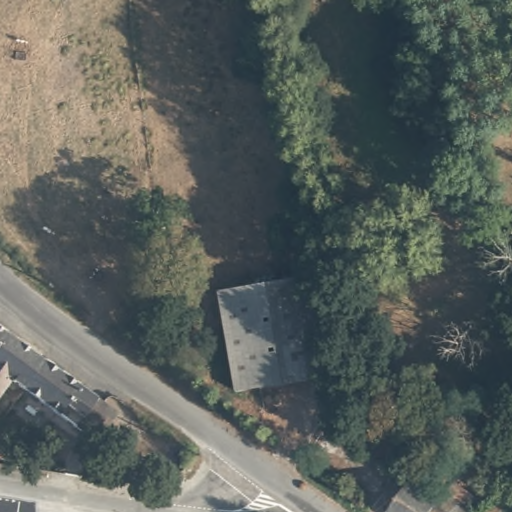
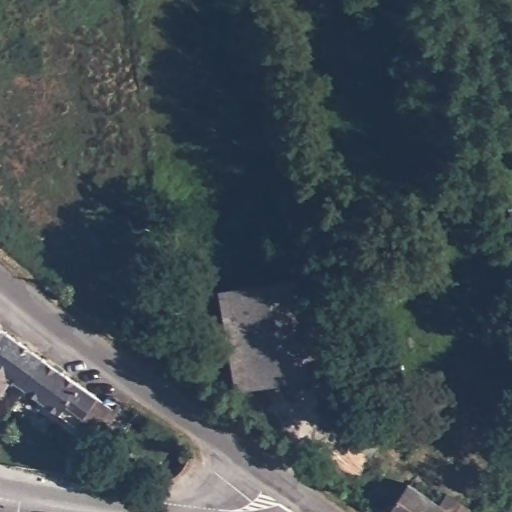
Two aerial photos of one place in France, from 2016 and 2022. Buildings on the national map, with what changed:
unchanged [(224,292),(303,277),(318,377),(242,389),(224,292)]
unchanged [(368,338),(357,340),(353,322),(364,320),(368,338)]
unchanged [(0,337),(0,323),(6,328),(0,337)]
unchanged [(23,385),(11,376),(0,392),(0,337),(6,328),(42,355),(23,385)]
unchanged [(113,408),(91,436),(23,385),(42,355),(113,408)]
unchanged [(406,386),(373,391),(368,360),(401,355),(406,386)]
unchanged [(423,411),(419,386),(446,383),(448,408),(423,411)]
unchanged [(506,451),(501,440),(512,437),(512,448),(506,451)]
unchanged [(390,512),(386,509),(407,480),(437,501),(431,512),(390,512)]
unchanged [(444,491),(472,510),(470,512),(431,512),(437,501),(444,491)]

